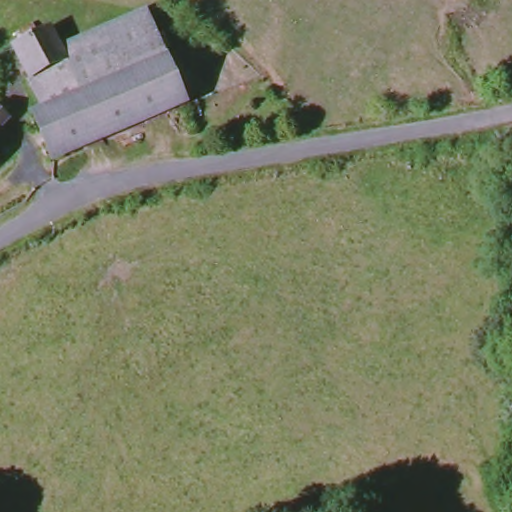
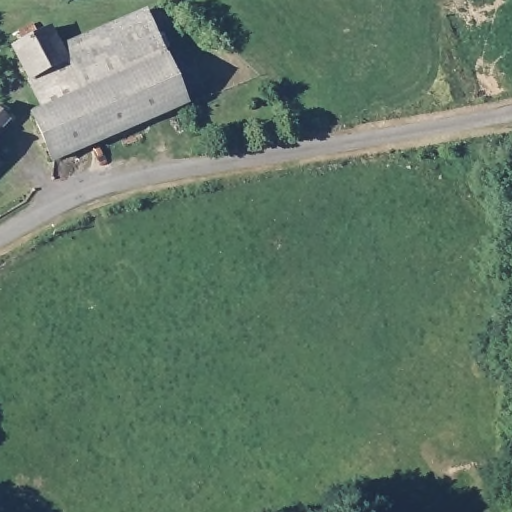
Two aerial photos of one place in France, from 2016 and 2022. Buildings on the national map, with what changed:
unchanged [(41,25),(45,37),(61,31),(70,54),(154,20),(189,107),(56,165),(38,115),(45,111),(21,49),(31,44),(26,33),(41,25)]
unchanged [(11,117),(0,130),(0,105),(11,117)]

